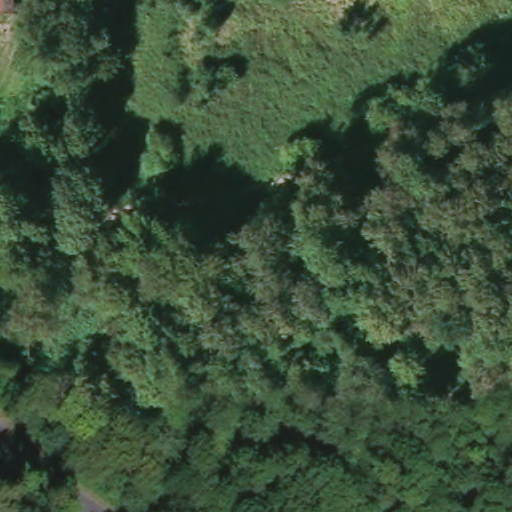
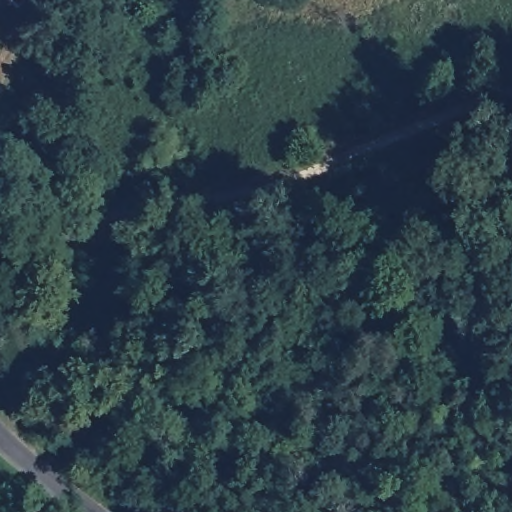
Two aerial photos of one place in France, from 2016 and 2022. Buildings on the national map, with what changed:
unchanged [(15,0),(16,11),(0,11),(0,0),(15,0)]

